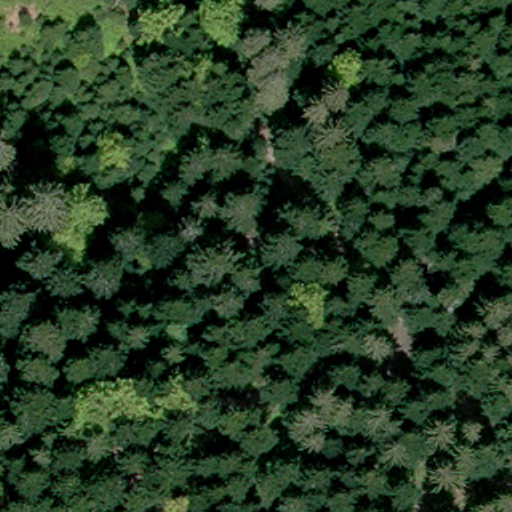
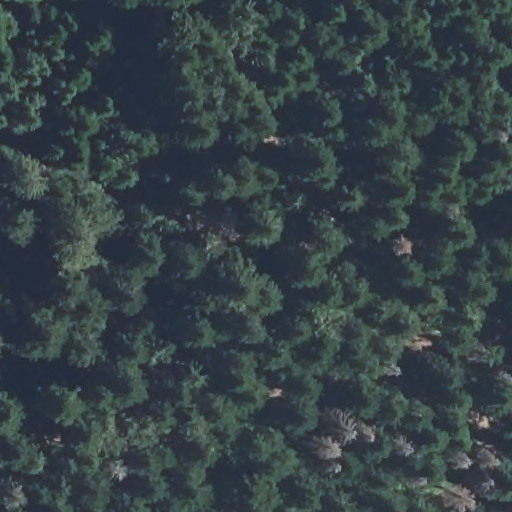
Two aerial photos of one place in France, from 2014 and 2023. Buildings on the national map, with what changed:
[]

